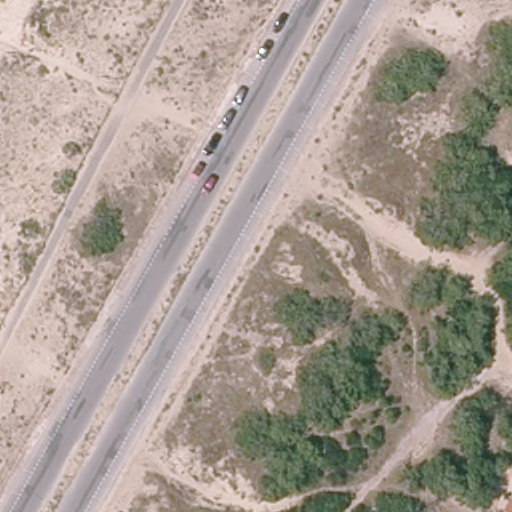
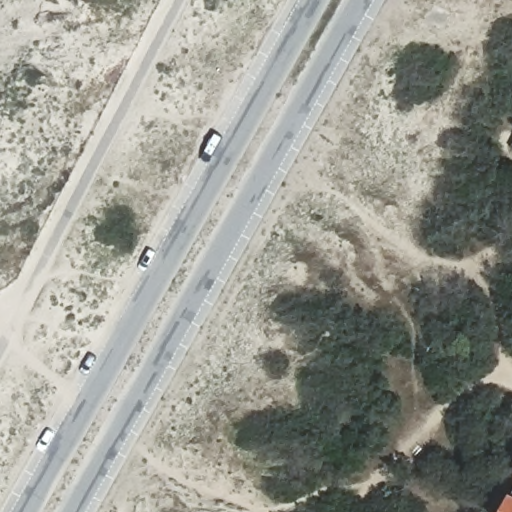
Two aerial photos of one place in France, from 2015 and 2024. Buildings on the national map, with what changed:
unchanged [(510,147),(512,143),(512,148),(510,147)]
unchanged [(507,493),(512,496),(512,512),(497,512),(507,493)]

